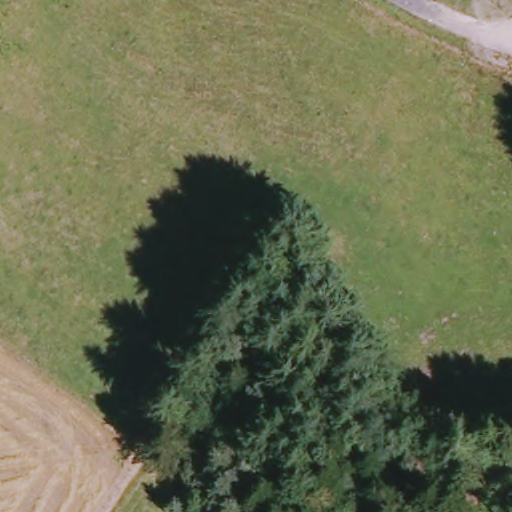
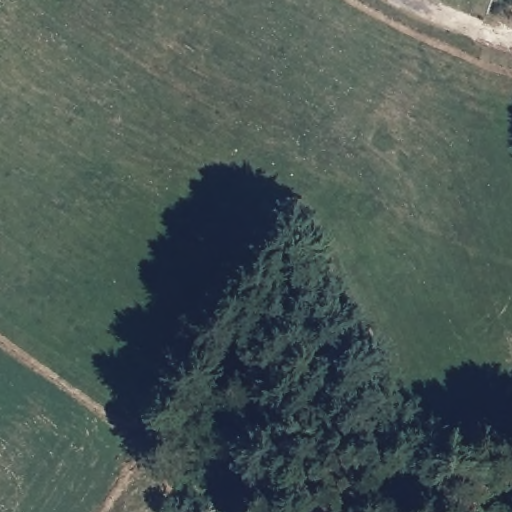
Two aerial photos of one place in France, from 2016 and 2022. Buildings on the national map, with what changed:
[]

